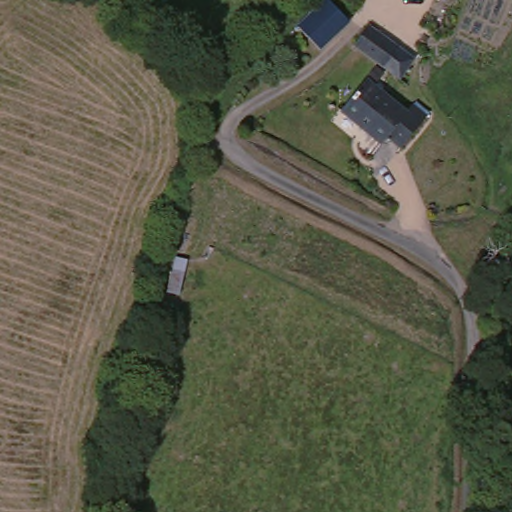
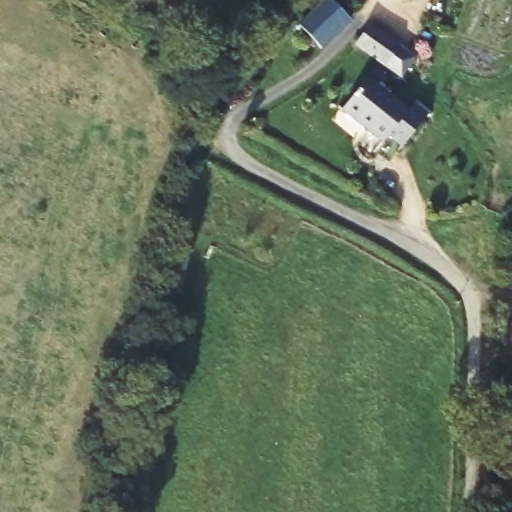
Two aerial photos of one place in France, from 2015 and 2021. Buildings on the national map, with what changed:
unchanged [(319,51),(297,29),(325,1),(350,21),(319,51)]
unchanged [(389,81),(349,44),(365,26),(371,20),(411,58),(389,81)]
unchanged [(410,114),(420,104),(431,117),(403,146),(392,134),(383,142),(345,106),(372,79),(410,114)]

